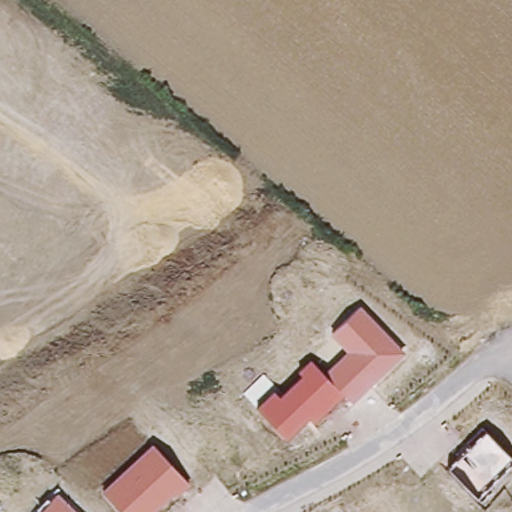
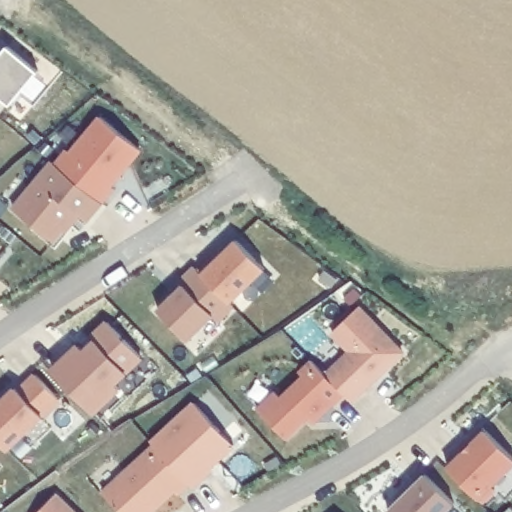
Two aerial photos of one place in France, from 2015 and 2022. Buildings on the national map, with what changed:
unchanged [(0,57),(7,48),(37,74),(10,107),(0,99),(0,57)]
new [(67,154),(70,157),(102,120),(140,152),(110,186),(112,189),(100,204),(55,168),(67,154)]
new [(100,204),(86,220),(80,216),(55,241),(13,206),(50,164),(55,168),(100,204)]
new [(230,303),(201,272),(235,240),(265,270),(230,303)]
new [(230,303),(233,306),(216,321),(212,316),(186,341),(157,309),(180,289),(176,284),(196,267),(201,272),(230,303)]
unchanged [(360,307),(405,352),(352,404),(343,394),(313,424),(308,419),(287,439),(257,407),(275,391),(280,395),(301,374),(299,371),(311,361),(322,372),(347,351),(331,334),(360,307)]
new [(79,350),(82,354),(94,343),(90,339),(106,325),(141,362),(115,387),(118,392),(94,416),(54,374),(79,350)]
new [(20,393),(36,378),(60,403),(6,453),(0,447),(0,407),(17,390),(20,393)]
new [(153,445),(196,405),(235,448),(205,477),(206,479),(195,490),(156,448),(153,445)]
unchanged [(448,467),(486,431),(512,459),(512,465),(490,487),(494,491),(481,502),(476,498),(448,467)]
unchanged [(152,445),(190,484),(176,497),(174,494),(154,512),(124,512),(104,490),(152,445)]
new [(425,473),(455,504),(446,512),(390,512),(388,509),(425,473)]
unchanged [(77,512),(40,512),(57,493),(77,512)]

